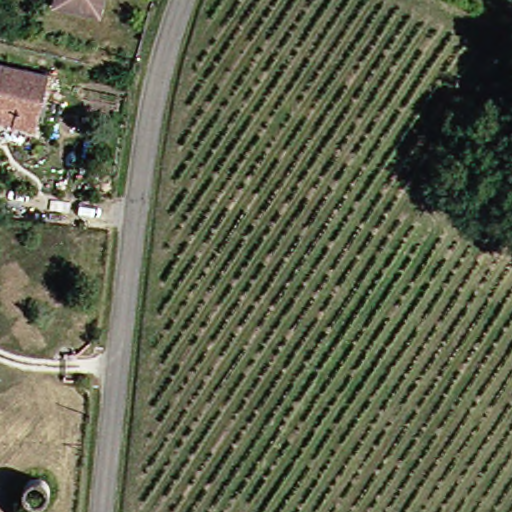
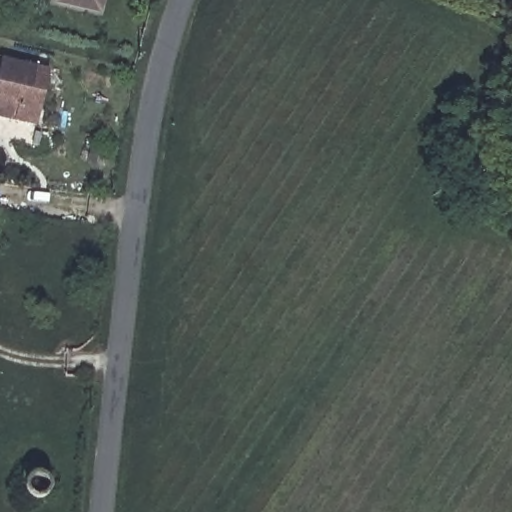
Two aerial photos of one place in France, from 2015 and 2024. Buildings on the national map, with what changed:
unchanged [(58,0),(104,0),(101,9),(58,0)]
unchanged [(31,66),(50,66),(46,112),(25,112),(24,120),(0,119),(0,95),(1,71),(31,72),(31,66)]
unchanged [(51,475),(54,478),(55,482),(55,487),(53,492),(46,497),(41,497),(37,496),(33,493),(31,489),(30,485),(30,480),(33,476),(36,473),(40,472),(45,472),(46,472),(51,475)]

